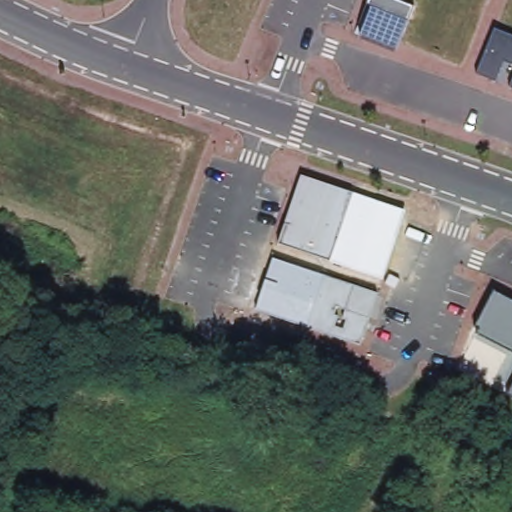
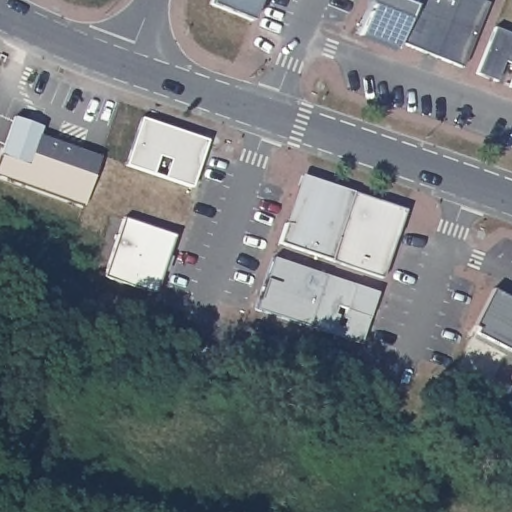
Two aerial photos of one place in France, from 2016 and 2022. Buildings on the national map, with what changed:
new [(213,0),(260,0),(252,20),(212,3),(213,0)]
unchanged [(373,0),(395,0),(416,8),(397,49),(360,33),(373,0)]
new [(482,0),(487,2),(462,67),(401,41),(414,11),(419,0),(482,0)]
unchanged [(497,80),(477,73),(495,30),(512,36),(512,63),(506,61),(497,80)]
unchanged [(512,83),(512,87),(511,86),(512,83)]
new [(16,118),(42,126),(39,134),(103,156),(86,207),(0,177),(0,164),(16,118)]
new [(205,140),(209,141),(205,154),(194,186),(192,186),(191,188),(130,167),(130,166),(128,164),(143,119),(205,140)]
unchanged [(279,244),(302,173),(350,189),(328,259),(279,244)]
unchanged [(350,189),(407,208),(384,277),(328,259),(350,189)]
new [(155,295),(105,278),(124,218),(175,236),(155,295)]
unchanged [(257,310),(273,258),(326,275),(309,328),(257,310)]
unchanged [(309,328),(326,275),(376,292),(359,344),(309,328)]
unchanged [(496,289),(512,297),(512,349),(475,330),(496,289)]
unchanged [(512,388),(512,396),(509,394),(512,388)]

